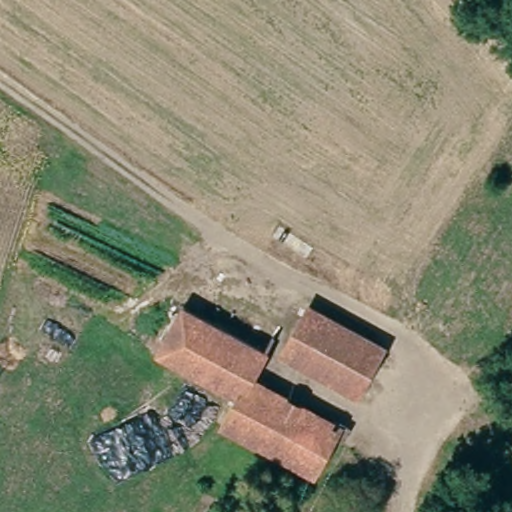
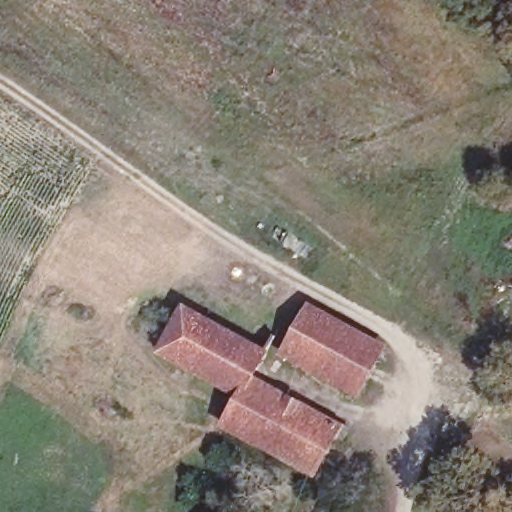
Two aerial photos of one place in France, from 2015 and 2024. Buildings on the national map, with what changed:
unchanged [(384,346),(357,395),(284,353),(309,303),(384,346)]
unchanged [(186,312),(226,337),(240,312),(281,335),(255,385),(340,434),(314,481),(226,434),(202,418),(219,390),(163,357),(186,312)]

